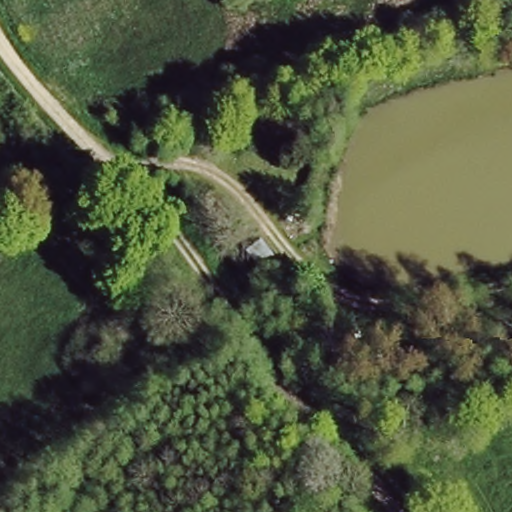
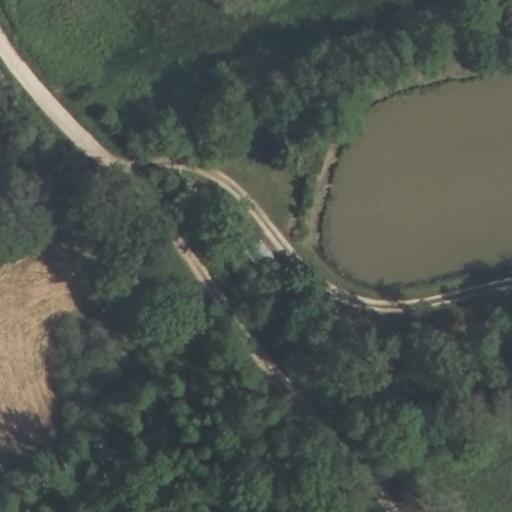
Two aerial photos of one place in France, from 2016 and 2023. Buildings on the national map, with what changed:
unchanged [(283,265),(267,278),(242,250),(260,239),(283,265)]

